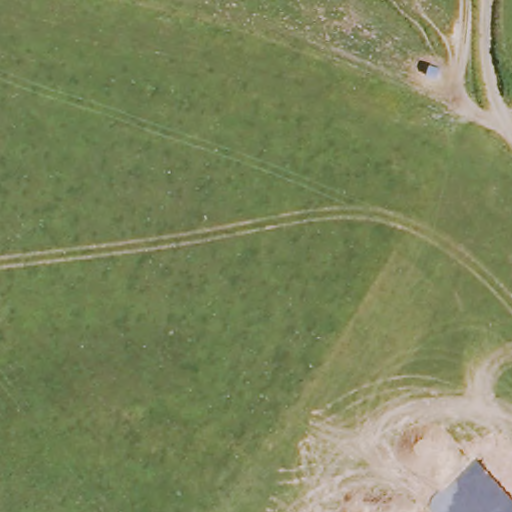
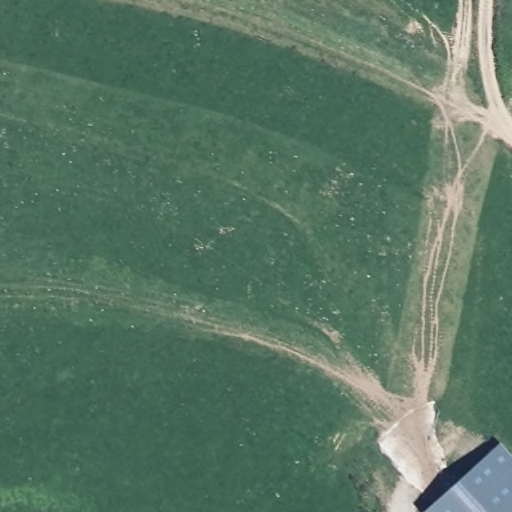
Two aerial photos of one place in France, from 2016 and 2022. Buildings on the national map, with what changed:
new [(497,445),(512,461),(512,512),(422,512),(497,445)]

